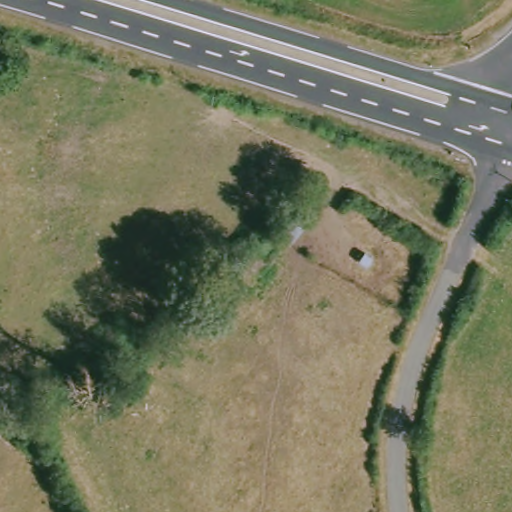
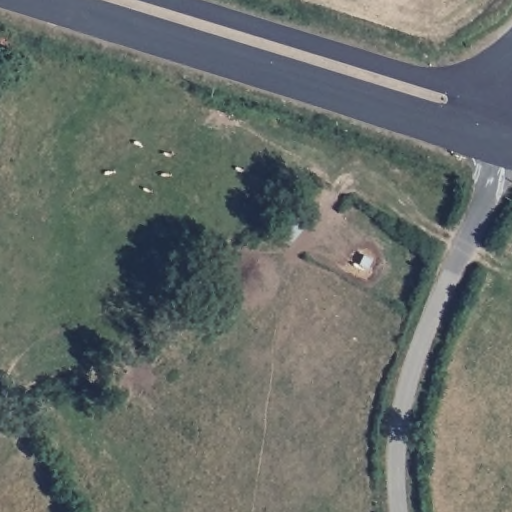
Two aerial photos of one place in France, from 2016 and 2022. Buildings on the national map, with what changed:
unchanged [(309,192),(320,200),(286,245),(275,237),(309,192)]

